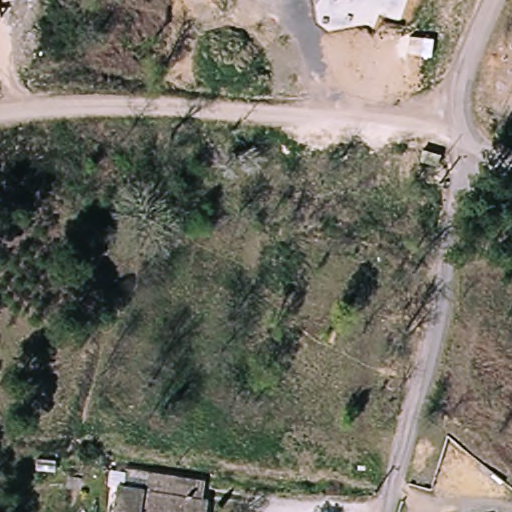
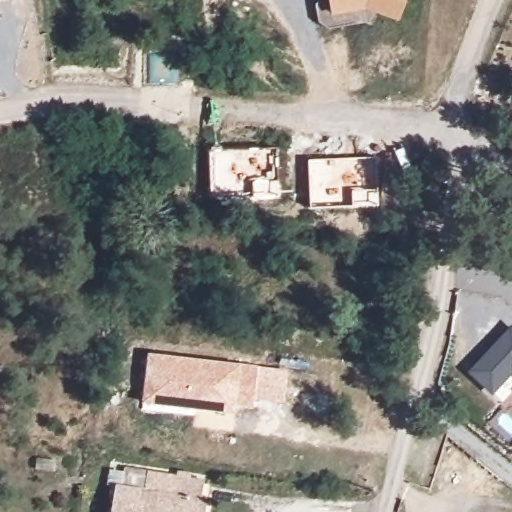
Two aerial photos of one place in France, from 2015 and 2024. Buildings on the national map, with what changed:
unchanged [(0,2),(0,0),(10,0),(0,2)]
new [(397,19),(377,13),(373,25),(363,24),(331,29),(320,21),(319,4),(323,0),(405,0),(397,19)]
unchanged [(2,19),(0,19),(0,12),(2,19)]
new [(277,196),(210,196),(209,151),(275,147),(277,196)]
new [(309,160),(376,157),(380,205),(311,209),(309,160)]
new [(512,374),(492,395),(468,371),(511,323),(512,324),(512,374)]
new [(288,370),(283,402),(254,399),(253,407),(235,406),(234,413),(143,401),(149,352),(242,363),(288,370)]
unchanged [(204,483),(202,504),(207,505),(206,512),(114,512),(118,472),(204,483)]

